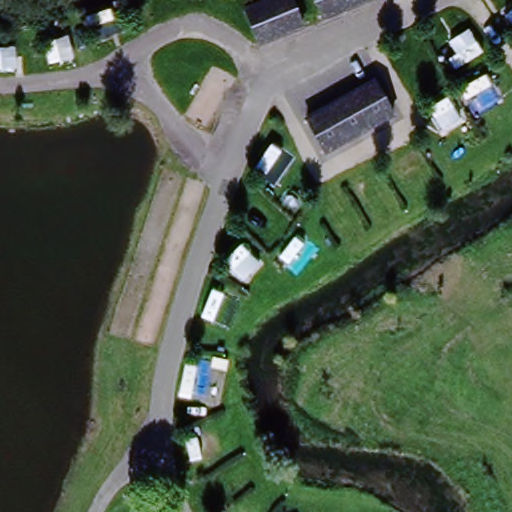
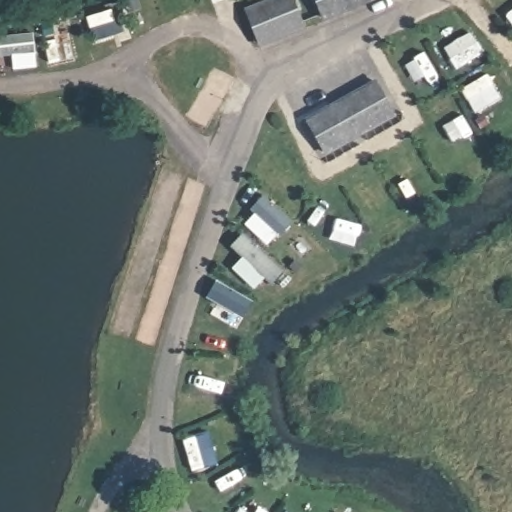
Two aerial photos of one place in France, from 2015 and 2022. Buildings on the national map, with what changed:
unchanged [(249,16),(283,0),(292,0),(307,25),(265,45),(249,16)]
unchanged [(312,0),(356,0),(320,17),(312,0)]
unchanged [(309,122),(375,83),(393,111),(327,152),(309,122)]

